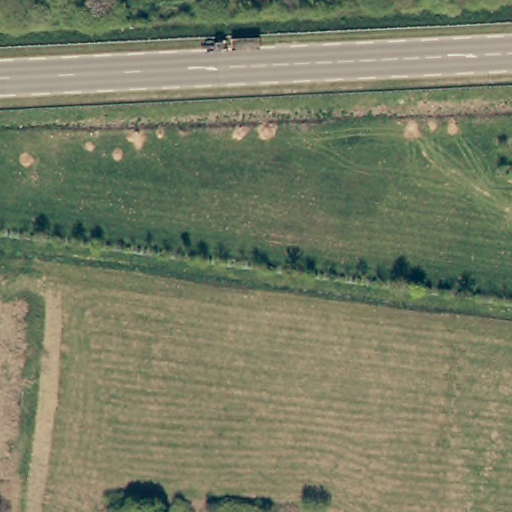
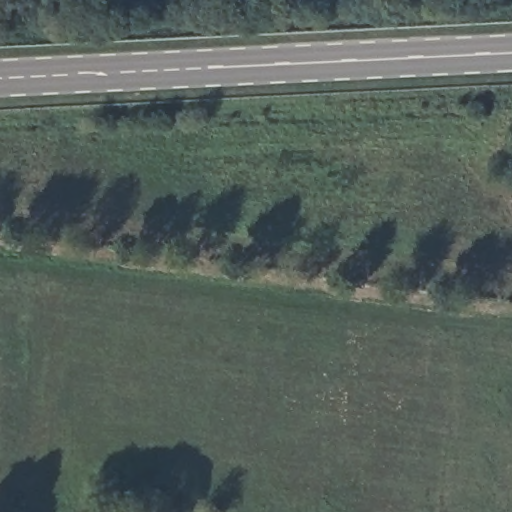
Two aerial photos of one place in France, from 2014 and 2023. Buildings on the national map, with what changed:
[]

